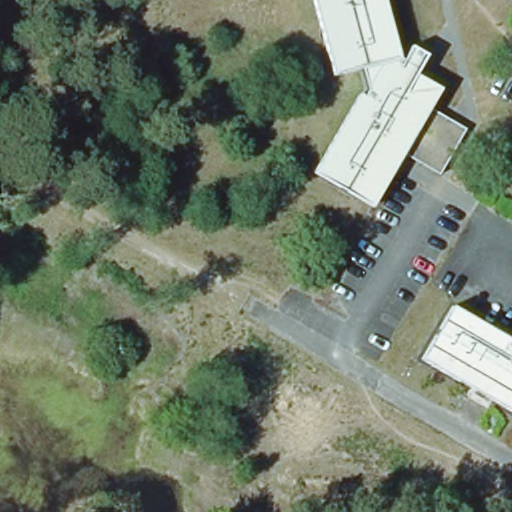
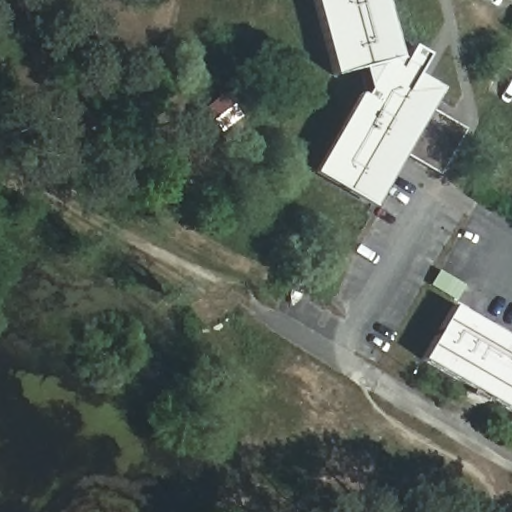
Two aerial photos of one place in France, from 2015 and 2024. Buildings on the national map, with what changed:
unchanged [(366,92),(362,74),(333,78),(314,0),(386,0),(402,62),(412,49),(428,57),(418,77),(443,92),(430,111),(465,129),(439,176),(403,156),(375,207),(313,175),(366,92)]
unchanged [(422,362),(456,308),(512,341),(512,414),(422,362)]

